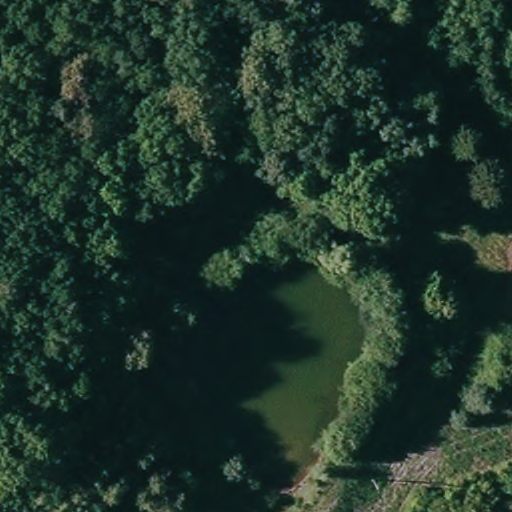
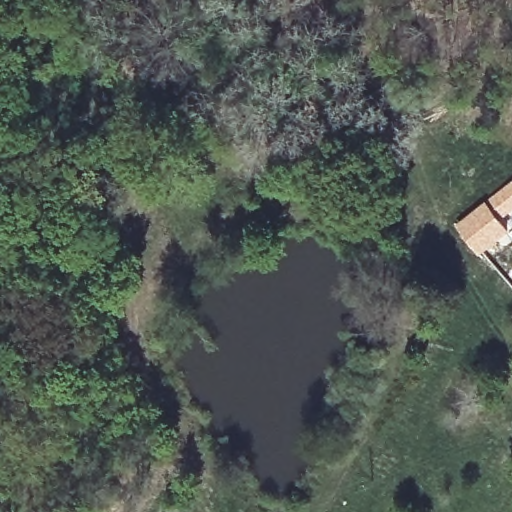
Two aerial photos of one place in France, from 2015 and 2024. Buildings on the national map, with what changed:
new [(512,233),(481,257),(457,226),(512,183),(512,213),(503,221),(512,233)]

